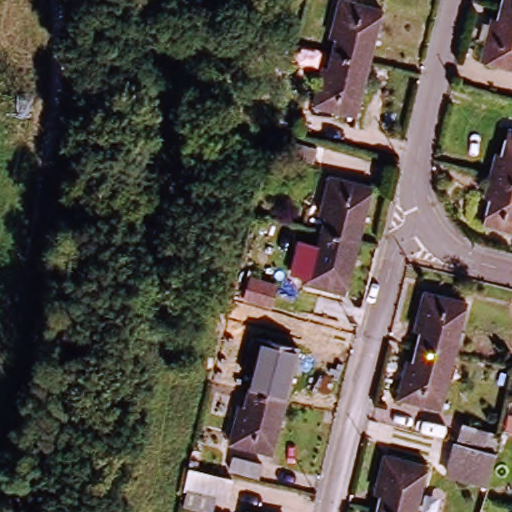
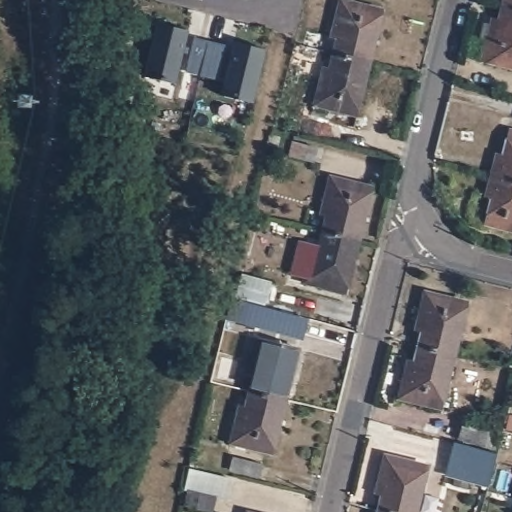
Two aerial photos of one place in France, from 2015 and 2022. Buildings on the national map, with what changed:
unchanged [(333,36),(343,0),(347,0),(382,10),(369,63),(335,54),(340,38),(333,36)]
unchanged [(509,0),(512,0),(512,7),(507,6),(509,0)]
unchanged [(497,18),(503,20),(507,6),(512,7),(512,65),(487,59),(497,18)]
new [(157,23),(187,31),(175,83),(144,76),(157,23)]
new [(217,77),(202,73),(186,70),(193,37),(210,41),(225,45),(217,77)]
new [(234,42),(265,50),(252,103),(221,95),(234,42)]
unchanged [(369,63),(355,115),(315,105),(325,68),(331,69),(335,54),(369,63)]
unchanged [(508,163),(512,150),(512,183),(497,180),(502,161),(508,163)]
unchanged [(512,234),(492,228),(498,204),(492,202),(497,180),(512,183),(512,234)]
unchanged [(327,224),(319,222),(330,181),(372,192),(358,245),(323,237),(327,224)]
unchanged [(358,245),(346,296),(303,286),(312,251),(319,252),(323,237),(358,245)]
unchanged [(249,284),(277,291),(272,306),(245,300),(249,284)]
unchanged [(422,331),(415,330),(424,292),(468,303),(456,355),(418,346),(422,331)]
unchanged [(278,402),(250,395),(252,383),(247,382),(257,342),(298,353),(285,404),(278,402)]
unchanged [(456,355),(443,409),(399,398),(408,361),(414,362),(418,346),(456,355)]
unchanged [(271,459),(229,449),(238,413),(245,414),(250,395),(278,402),(285,404),(271,459)]
unchanged [(457,416),(495,426),(490,442),(454,432),(457,416)]
unchanged [(492,447),(484,479),(443,468),(452,436),(492,447)]
unchanged [(512,450),(512,464),(495,460),(500,447),(512,450)]
unchanged [(235,456),(262,463),(258,476),(232,469),(235,456)]
unchanged [(379,510),(382,495),(377,493),(386,456),(430,467),(419,512),(387,512),(379,510)]
unchanged [(202,467),(228,474),(222,499),(195,493),(202,467)]
unchanged [(379,510),(387,512),(379,512),(379,510)]

